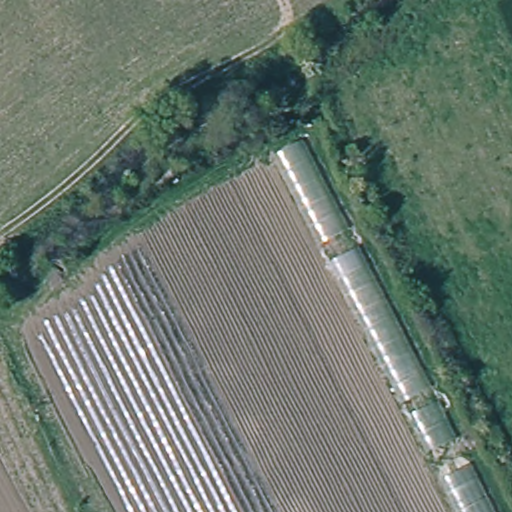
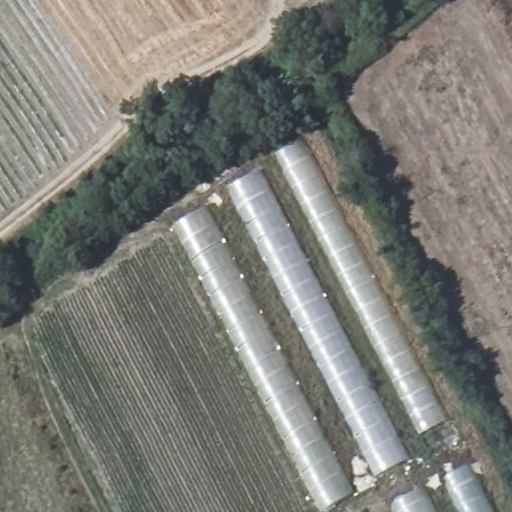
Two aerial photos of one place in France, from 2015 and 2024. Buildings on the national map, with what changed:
unchanged [(301,140),(493,512),(460,512),(276,151),(301,140)]
new [(260,171),(438,512),(393,512),(225,189),(260,171)]
new [(323,510),(175,224),(205,208),(354,494),(323,510)]

